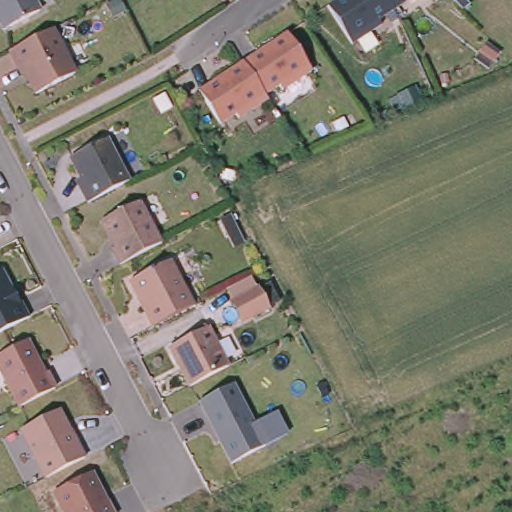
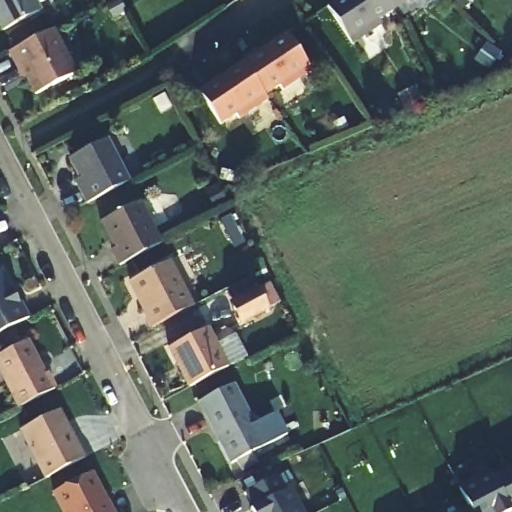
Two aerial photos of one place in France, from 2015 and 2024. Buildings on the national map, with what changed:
unchanged [(38,13),(1,31),(0,28),(0,0),(31,0),(38,13)]
unchanged [(233,2),(232,0),(236,0),(233,2)]
unchanged [(390,12),(376,22),(379,26),(349,45),(324,7),(336,0),(410,0),(390,12)]
unchanged [(49,29),(73,74),(33,95),(18,66),(15,67),(6,52),(49,29)]
unchanged [(208,84),(241,63),(253,55),(284,34),(309,72),(280,91),(277,87),(262,96),(266,101),(236,120),(233,116),(218,125),(199,97),(196,92),(208,84)]
unchanged [(103,140),(124,181),(84,202),(78,189),(82,187),(67,158),(103,140)]
unchanged [(136,202),(157,243),(116,264),(108,250),(111,248),(98,222),(136,202)]
unchanged [(125,282),(173,257),(196,306),(151,330),(125,282)]
unchanged [(18,302),(25,317),(0,331),(0,276),(15,304),(18,302)]
unchanged [(256,287),(266,305),(238,319),(228,302),(256,287)]
unchanged [(203,328),(223,367),(186,387),(166,349),(203,328)]
unchanged [(0,355),(27,342),(53,388),(16,409),(0,381),(0,355)]
unchanged [(196,401),(234,384),(264,446),(229,464),(196,401)]
unchanged [(55,411),(80,458),(43,477),(18,430),(55,411)]
new [(459,488),(490,472),(493,477),(512,467),(512,506),(509,507),(511,511),(509,512),(464,512),(469,509),(459,488)]
unchanged [(109,512),(59,512),(49,493),(88,473),(109,512)]
new [(284,492),(289,489),(301,512),(252,512),(250,509),(253,507),(246,492),(276,476),(284,492)]

